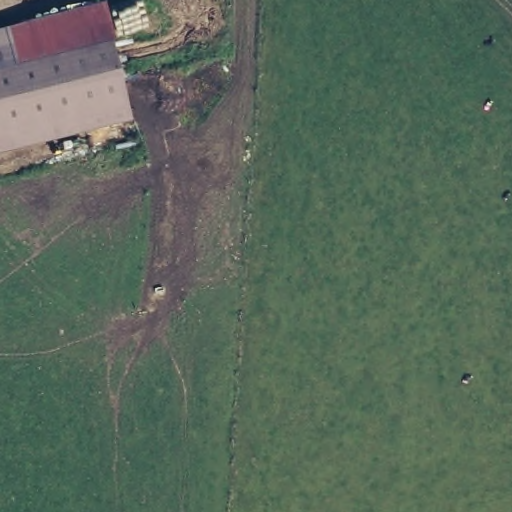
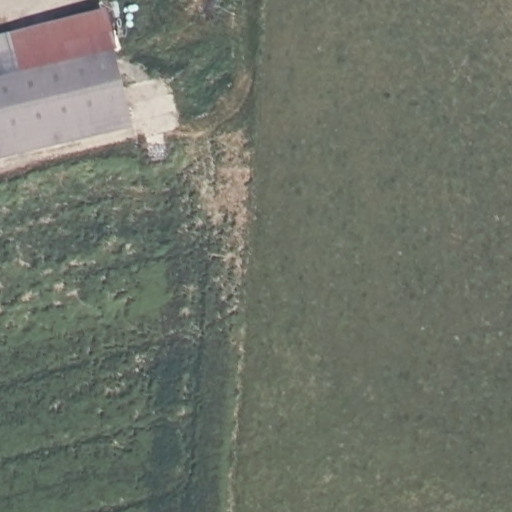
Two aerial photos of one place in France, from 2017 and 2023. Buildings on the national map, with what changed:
unchanged [(61,21),(110,9),(114,49),(136,129),(0,162),(0,36),(61,21)]

